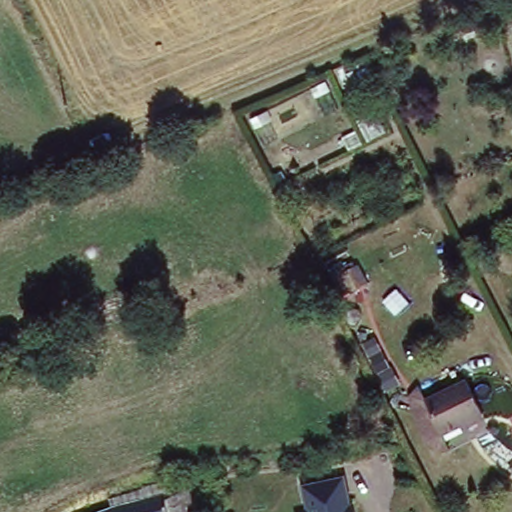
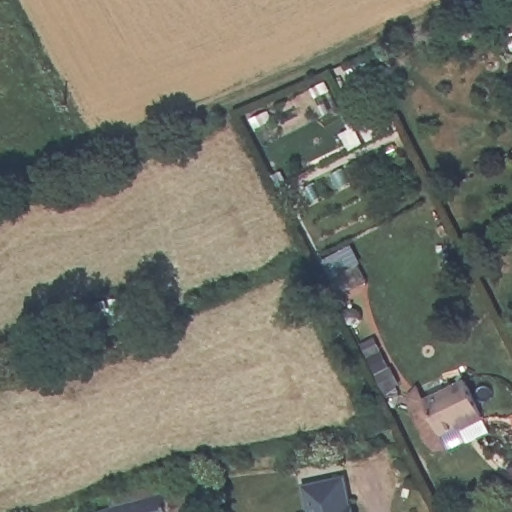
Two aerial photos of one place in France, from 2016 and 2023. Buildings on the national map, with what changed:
unchanged [(460,425),(459,420),(440,426),(428,391),(471,377),(482,413),(483,418),(460,425)]
unchanged [(345,474),(354,512),(311,512),(307,482),(345,474)]
unchanged [(161,493),(192,485),(198,512),(166,512),(161,493)]
unchanged [(119,503),(161,493),(166,512),(97,512),(119,503)]

